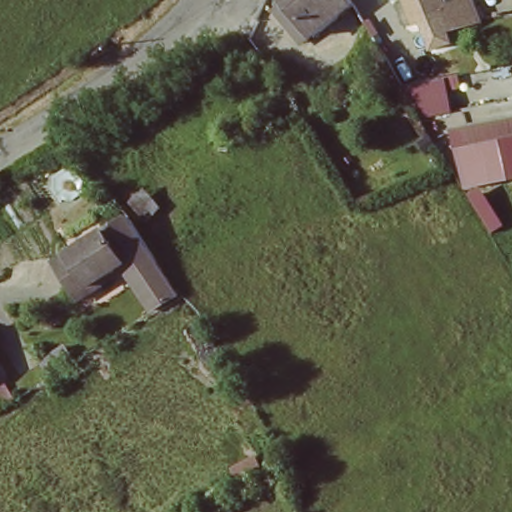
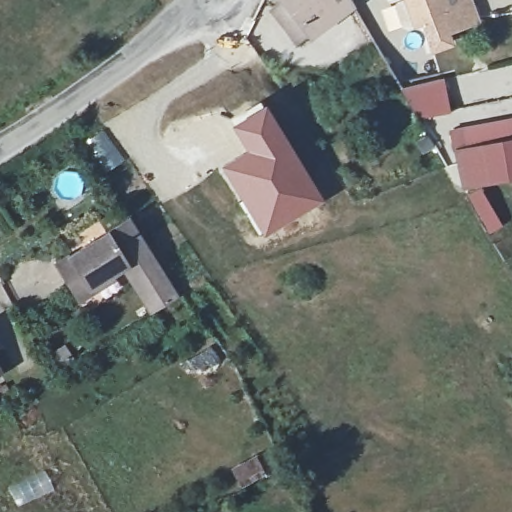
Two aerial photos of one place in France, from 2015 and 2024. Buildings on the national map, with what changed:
unchanged [(352,14),(334,27),(328,22),(295,52),(287,44),(304,28),(279,0),(344,0),(352,14)]
unchanged [(416,36),(412,25),(404,0),(467,0),(468,6),(472,21),(416,36)]
unchanged [(418,116),(401,85),(443,76),(447,111),(418,116)]
new [(242,147),(227,123),(262,103),(322,199),(261,236),(217,165),(242,147)]
unchanged [(437,153),(462,149),(457,127),(512,118),(512,181),(458,192),(437,153)]
unchanged [(55,266),(66,259),(62,252),(123,215),(175,298),(148,313),(125,274),(76,304),(55,266)]

